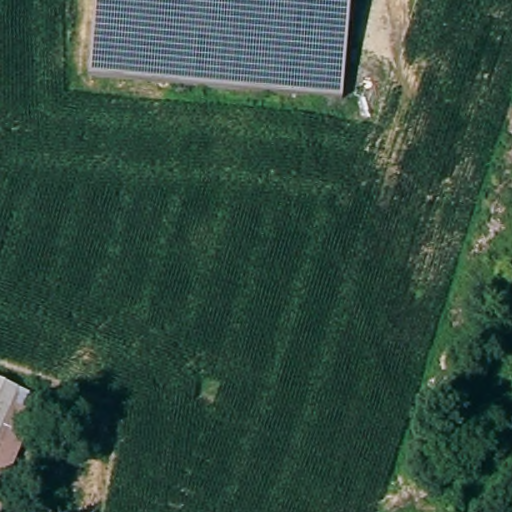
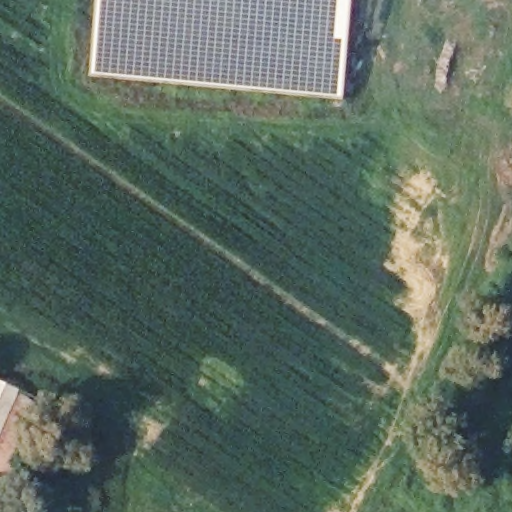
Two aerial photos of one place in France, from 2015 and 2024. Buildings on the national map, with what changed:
unchanged [(340,95),(91,73),(98,0),(349,0),(340,95)]
unchanged [(15,390),(0,422),(0,384),(15,390)]
unchanged [(21,497),(14,512),(0,512),(0,487),(21,497)]
unchanged [(14,512),(21,497),(41,507),(39,512),(14,512)]

